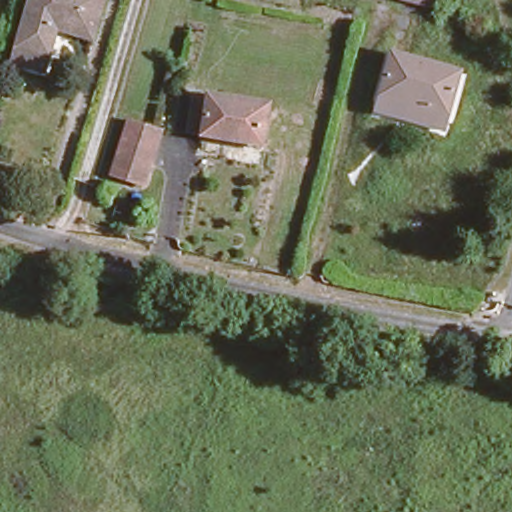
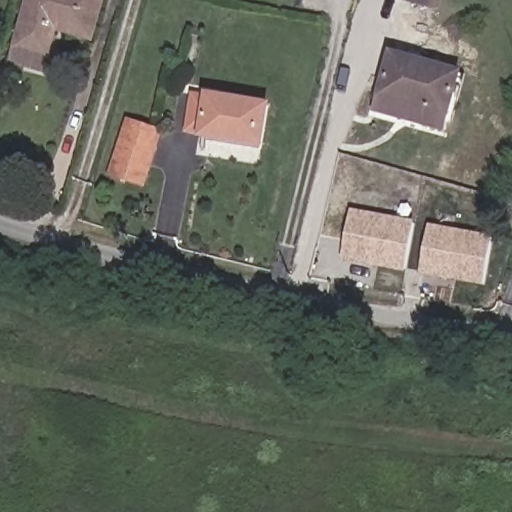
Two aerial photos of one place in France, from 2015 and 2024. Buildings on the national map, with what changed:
unchanged [(57,53),(54,68),(15,60),(30,0),(106,0),(97,31),(94,41),(62,34),(57,53)]
unchanged [(461,67),(448,123),(380,109),(393,54),(461,67)]
unchanged [(269,103),(260,143),(187,127),(196,89),(269,103)]
unchanged [(128,112),(158,119),(141,185),(111,176),(128,112)]
new [(416,221),(406,272),(342,261),(352,210),(416,221)]
new [(494,237),(484,286),(420,275),(429,224),(494,237)]

